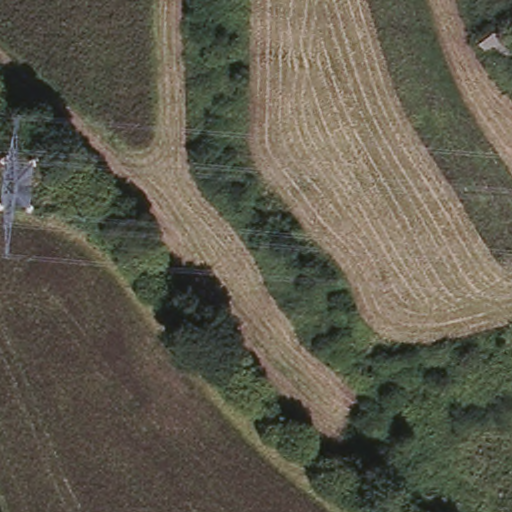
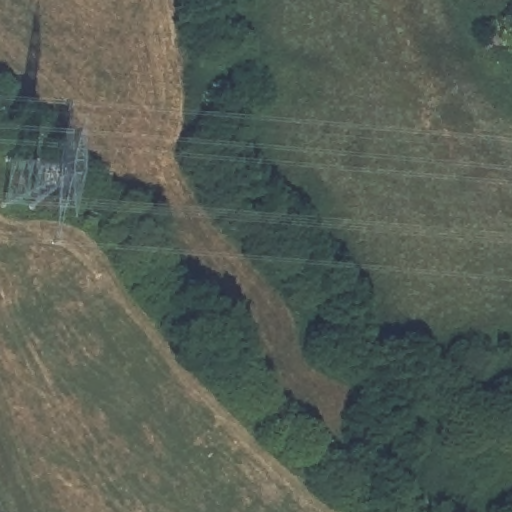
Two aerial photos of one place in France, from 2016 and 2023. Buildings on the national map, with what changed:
unchanged [(502,20),(512,37),(512,49),(491,57),(478,35),(502,20)]

